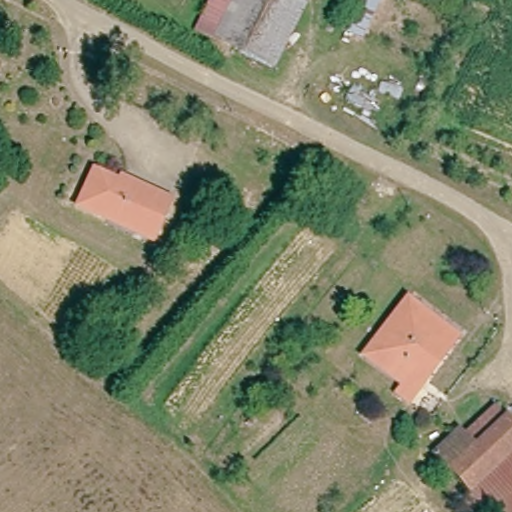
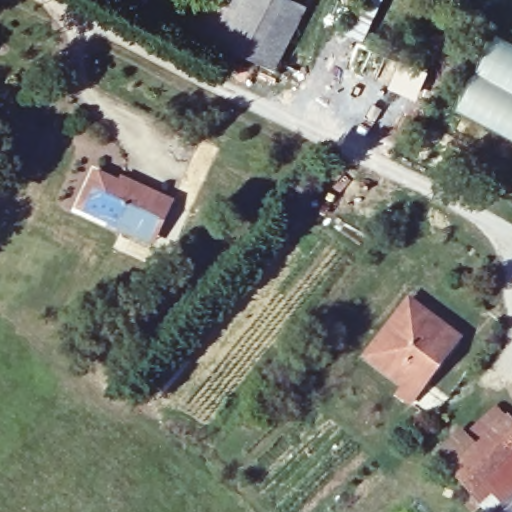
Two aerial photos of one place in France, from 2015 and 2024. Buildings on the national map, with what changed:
unchanged [(276,71),(196,33),(212,0),(299,0),(307,4),(276,71)]
new [(512,43),(512,142),(453,110),(492,33),(512,43)]
new [(399,60),(428,72),(415,101),(386,87),(399,60)]
unchanged [(147,242),(131,234),(77,203),(95,170),(119,182),(122,177),(152,195),(167,203),(147,242)]
unchanged [(402,391),(366,359),(412,301),(460,340),(407,403),(398,395),(402,391)]
unchanged [(460,433),(466,438),(482,420),(492,409),(504,420),(512,427),(512,456),(473,496),(452,476),(435,460),(452,442),(460,433)]
unchanged [(473,496),(512,456),(512,512),(490,512),(473,496)]

